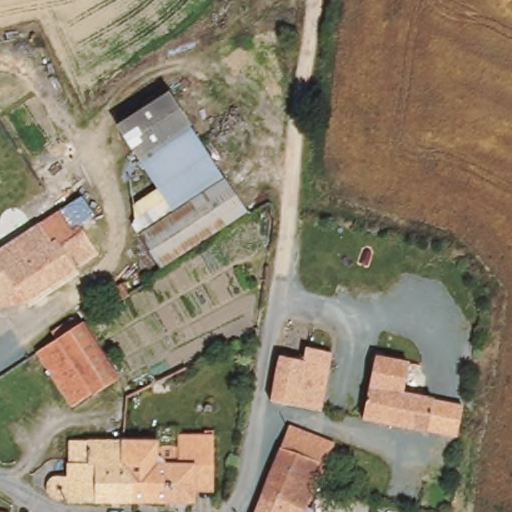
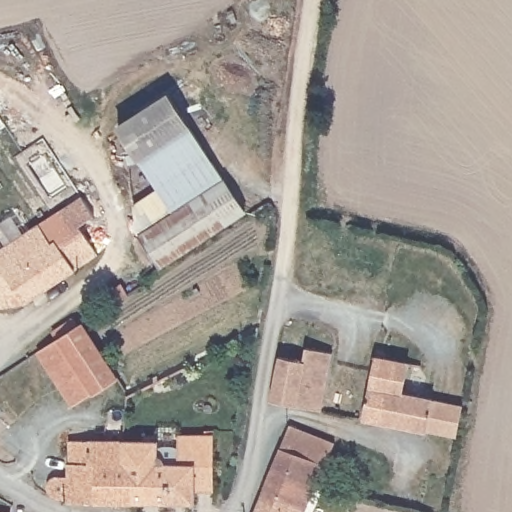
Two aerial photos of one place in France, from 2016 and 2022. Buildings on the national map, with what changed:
unchanged [(123,126),(173,94),(194,125),(143,158),(123,126)]
unchanged [(249,212),(165,266),(143,232),(139,204),(163,188),(143,158),(194,125),(249,212)]
unchanged [(75,270),(23,304),(0,309),(0,249),(39,224),(81,198),(94,217),(79,225),(82,231),(98,254),(75,270)]
unchanged [(102,295),(121,283),(128,293),(108,305),(102,295)]
unchanged [(87,317),(101,338),(114,359),(122,372),(77,401),(42,347),(87,317)]
unchanged [(279,356),(303,361),(305,347),(332,353),(320,411),(271,401),(279,356)]
unchanged [(455,438),(427,432),(363,419),(375,356),(408,363),(402,393),(433,399),(462,405),(455,438)]
unchanged [(294,420),(339,438),(308,508),(265,494),(294,420)]
unchanged [(138,496),(138,464),(136,464),(135,464),(127,463),(128,441),(162,441),(162,448),(167,447),(173,447),(178,447),(183,448),(183,436),(218,435),(219,466),(199,466),(199,490),(200,503),(180,503),(164,503),(138,503),(138,496)]
unchanged [(73,498),(63,498),(61,498),(59,497),(56,495),(54,493),(53,490),(53,487),(53,484),(55,481),(57,479),(59,477),(62,477),(73,477),(74,463),(75,463),(75,440),(128,441),(127,463),(135,464),(136,464),(138,464),(138,496),(138,503),(74,502),(73,498)]
unchanged [(258,511),(265,494),(308,508),(307,512),(258,512),(258,511)]
unchanged [(5,512),(0,512),(0,511),(5,512)]

